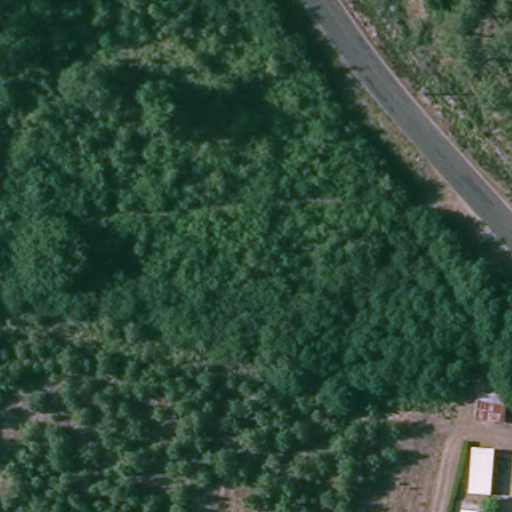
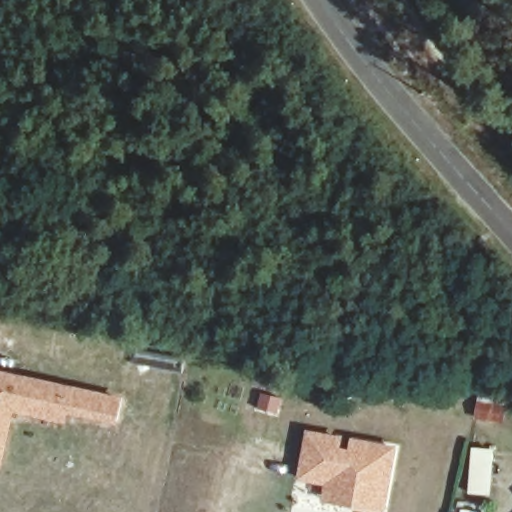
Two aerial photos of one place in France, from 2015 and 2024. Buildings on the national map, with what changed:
new [(119,423),(67,412),(65,422),(13,413),(2,467),(0,467),(0,371),(123,400),(119,423)]
new [(343,437),(342,447),(350,448),(351,437),(397,446),(386,512),(372,512),(320,502),(323,485),(297,481),(306,430),(343,437)]
unchanged [(492,447),(488,497),(462,495),(463,446),(492,447)]

